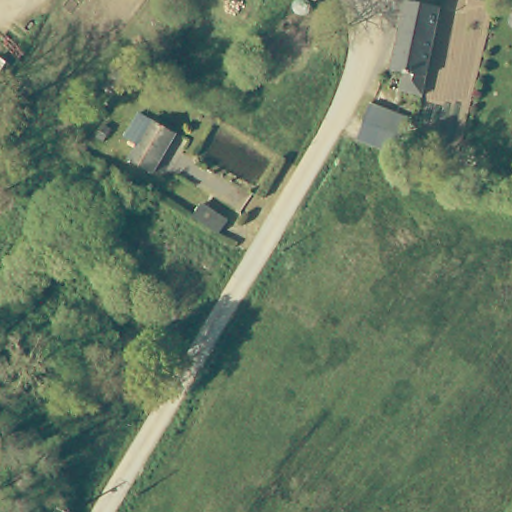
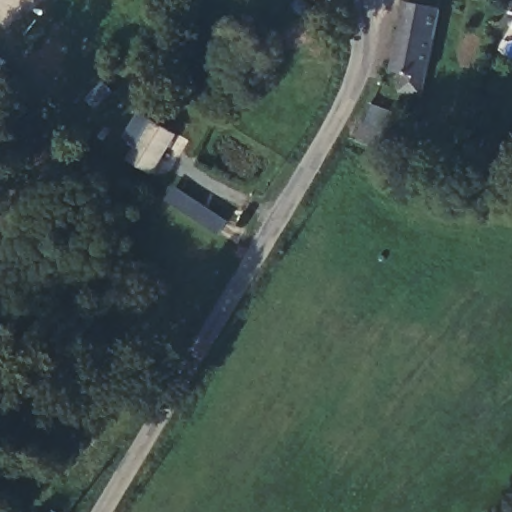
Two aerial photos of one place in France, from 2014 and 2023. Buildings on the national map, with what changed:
unchanged [(307,5),(296,0),(314,0),(311,7),(307,5)]
unchanged [(420,87),(398,83),(401,70),(401,66),(391,64),(402,0),(413,0),(436,4),(423,74),(420,87)]
unchanged [(297,5),(303,6),(305,11),(305,12),(305,15),(302,16),(300,17),(298,18),(295,17),(293,16),(291,15),(291,12),(292,7),(297,5)]
unchanged [(512,25),(510,27),(508,28),(505,29),(503,28),(500,27),(499,25),(497,23),(497,20),(498,18),(502,14),(511,15),(512,17),(512,25)]
unchanged [(131,155),(117,147),(132,122),(167,142),(145,181),(124,169),(131,155)]
unchanged [(410,157),(393,151),(362,141),(369,123),(416,140),(410,157)]
unchanged [(201,209),(227,224),(219,237),(193,222),(201,209)]

